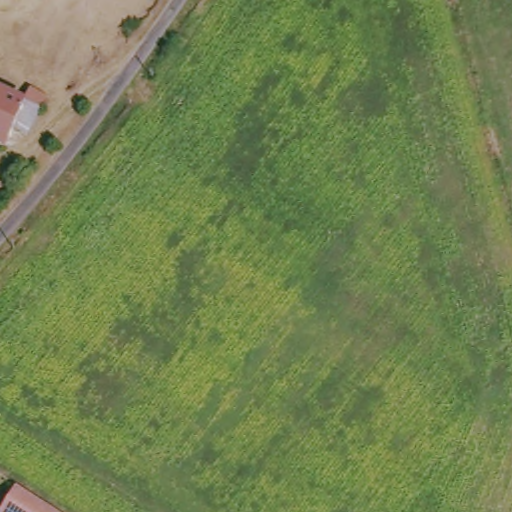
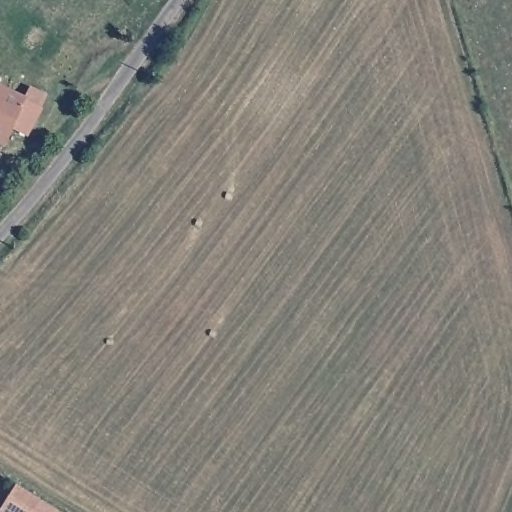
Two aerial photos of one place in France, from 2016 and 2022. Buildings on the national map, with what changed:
unchanged [(26,101),(42,111),(29,137),(13,130),(4,149),(0,147),(0,89),(26,101)]
unchanged [(58,512),(0,512),(0,509),(15,485),(58,512)]

